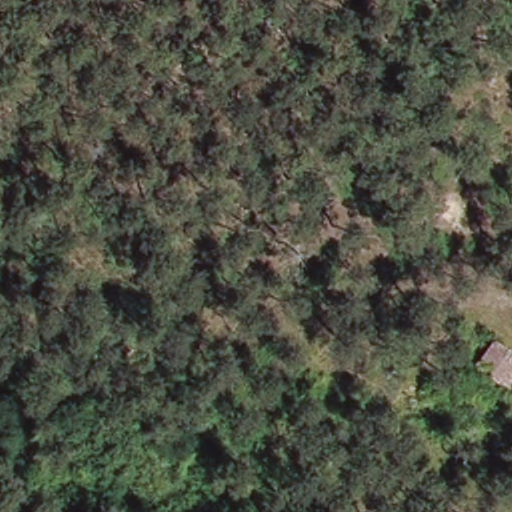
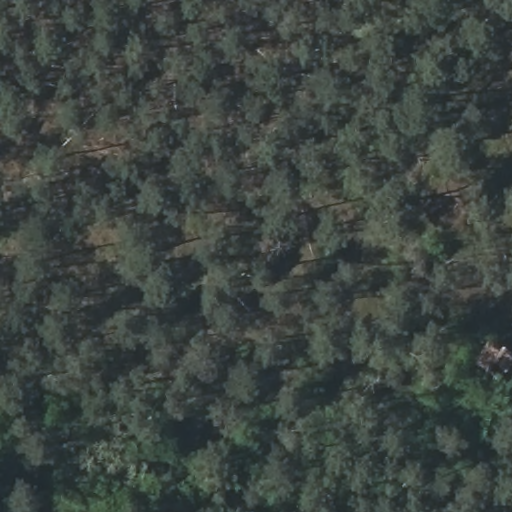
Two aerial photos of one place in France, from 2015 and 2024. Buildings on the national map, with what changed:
unchanged [(492,337),(512,354),(512,388),(508,392),(473,365),(492,337)]

